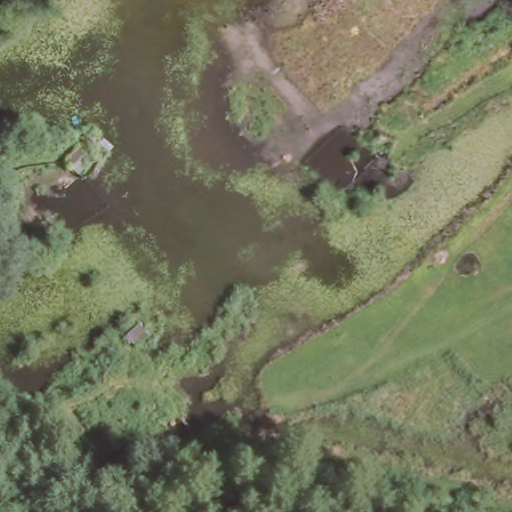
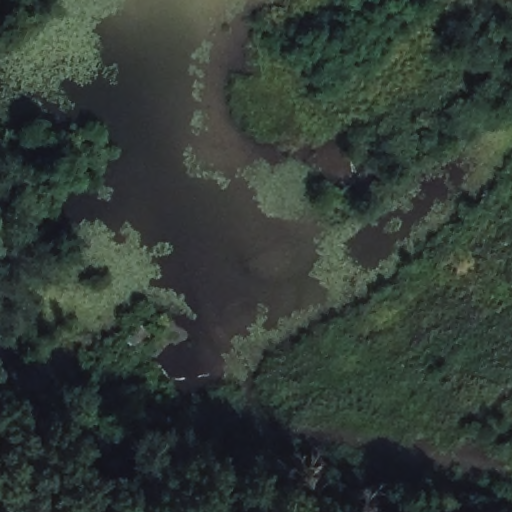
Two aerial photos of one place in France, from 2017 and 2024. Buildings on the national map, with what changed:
unchanged [(81,170),(65,158),(79,142),(95,152),(81,170)]

